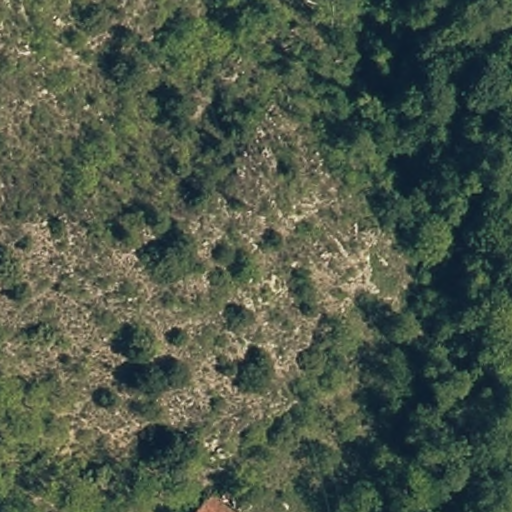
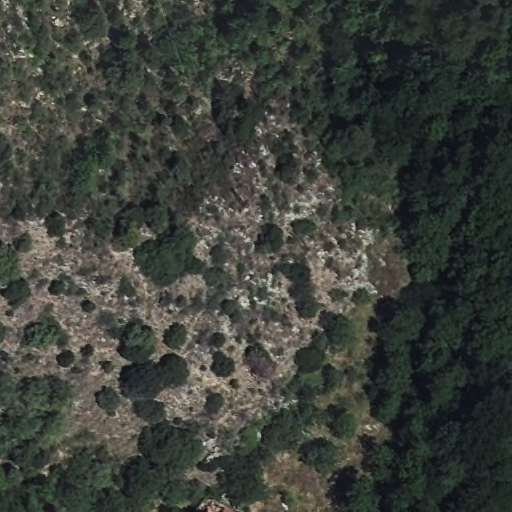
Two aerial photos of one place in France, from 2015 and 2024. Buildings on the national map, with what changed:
unchanged [(208,489),(233,512),(189,512),(208,489)]

